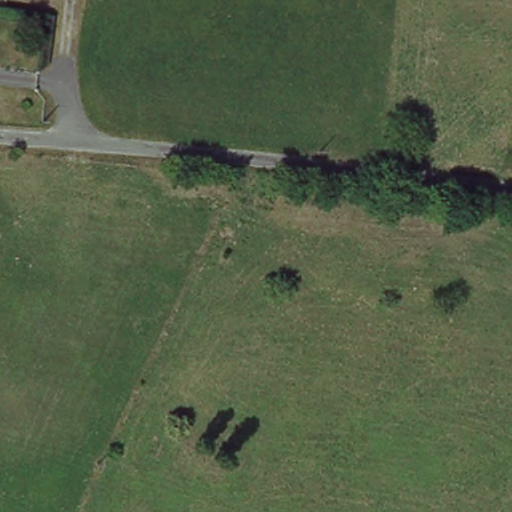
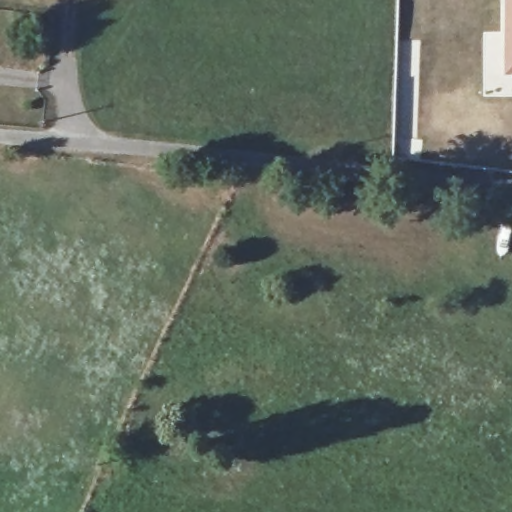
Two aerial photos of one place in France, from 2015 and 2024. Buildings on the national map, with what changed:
new [(503,0),(512,0),(512,75),(504,75),(503,0)]

